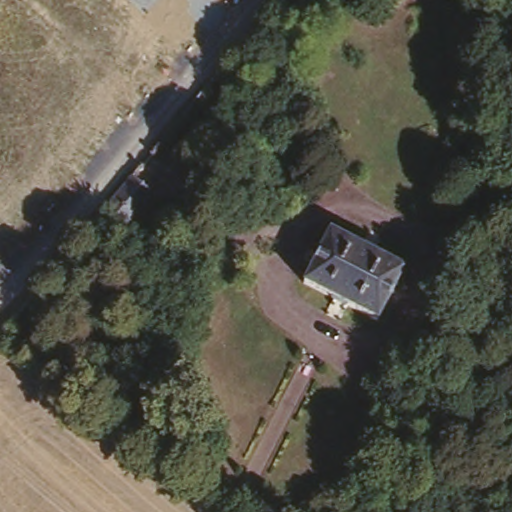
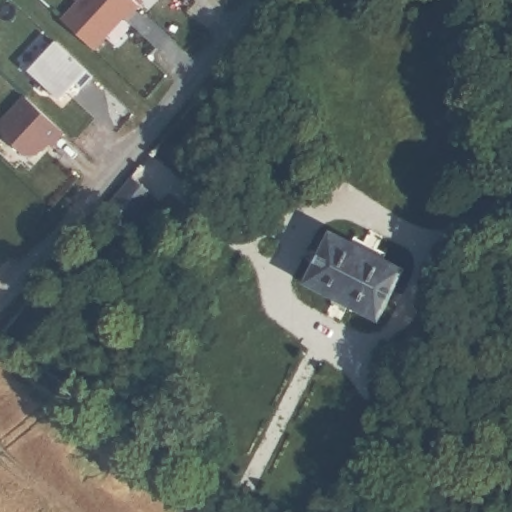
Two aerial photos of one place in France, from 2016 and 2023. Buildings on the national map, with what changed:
new [(139,3),(126,16),(124,15),(94,47),(63,18),(80,0),(135,0),(139,3)]
new [(54,41),(90,74),(79,87),(73,82),(57,98),(26,70),(54,41)]
new [(52,143),(49,140),(36,153),(26,154),(0,130),(0,122),(26,95),(64,130),(52,143)]
unchanged [(138,176),(159,192),(129,227),(110,210),(138,176)]
unchanged [(334,226),(407,266),(380,316),(308,274),(334,226)]

